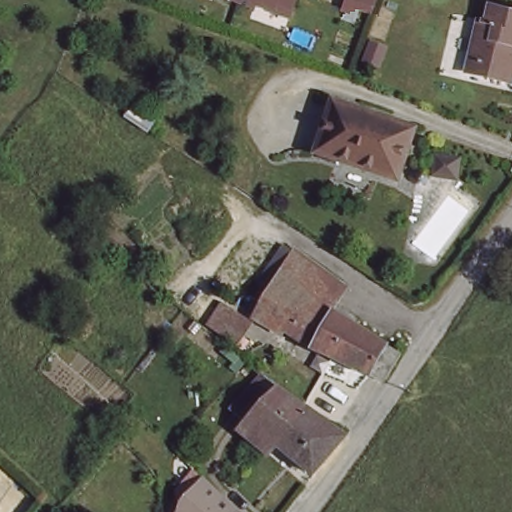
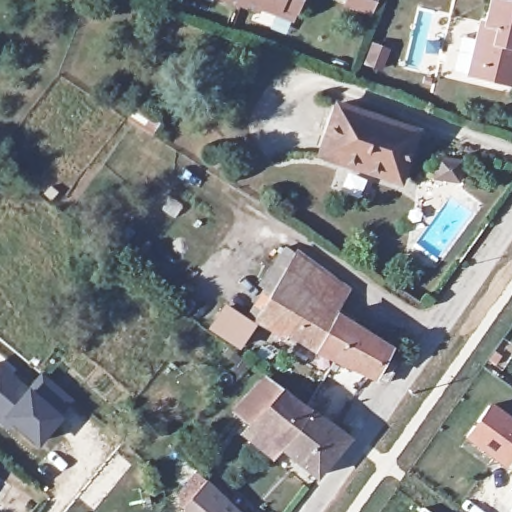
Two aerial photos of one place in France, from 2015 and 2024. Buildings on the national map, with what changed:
unchanged [(280,2),(277,9),(258,3),(257,6),(241,0),(298,0),(295,7),(280,2)]
unchanged [(346,0),(374,0),(371,9),(346,0)]
unchanged [(478,18),(484,20),(489,0),(512,0),(512,61),(511,61),(507,78),(482,73),(467,68),(470,54),(478,18)]
unchanged [(389,46),(382,65),(367,59),(374,41),(389,46)]
unchanged [(320,156),(335,104),(415,132),(399,183),(320,156)]
unchanged [(433,176),(437,157),(458,159),(455,178),(433,176)]
unchanged [(351,284),(333,309),(387,340),(385,346),(398,352),(382,379),(371,373),(309,347),(253,321),(236,343),(205,320),(217,300),(249,316),(293,242),(351,284)]
new [(35,442),(5,416),(0,421),(0,368),(27,392),(38,377),(67,400),(35,442)]
unchanged [(349,443),(315,478),(275,450),(266,462),(236,436),(242,429),(227,415),(259,375),(349,443)]
new [(471,437),(492,407),(512,422),(512,459),(511,458),(507,465),(499,459),(471,437)]
unchanged [(241,512),(178,512),(203,475),(241,512)]
new [(428,512),(425,512),(426,510),(428,512)]

